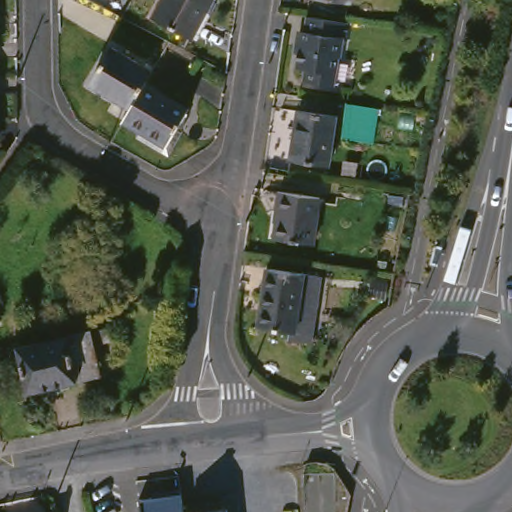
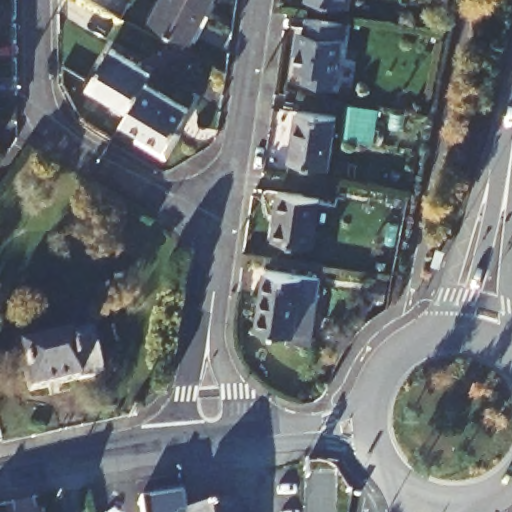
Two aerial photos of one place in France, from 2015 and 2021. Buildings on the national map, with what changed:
unchanged [(166,0),(216,0),(195,38),(156,17),(166,0)]
unchanged [(356,3),(337,0),(356,0),(356,3)]
unchanged [(343,40),(340,39),(337,61),(336,61),(332,88),(303,84),(305,72),(296,71),(300,47),(303,48),(305,33),(306,33),(308,18),(345,23),(343,40)]
unchanged [(93,83),(114,47),(156,72),(148,85),(134,108),(93,83)]
unchanged [(134,108),(148,85),(193,111),(170,150),(125,122),(134,108)]
unchanged [(373,150),(341,145),(346,109),(378,114),(373,150)]
unchanged [(301,117),(338,123),(330,173),(293,167),(301,117)]
unchanged [(283,243),(287,215),(285,215),(287,195),(313,199),(330,201),(323,249),(283,243)]
unchanged [(322,277),(312,345),(288,342),(290,333),(261,329),(270,269),(322,277)]
unchanged [(94,333),(104,377),(32,394),(21,350),(94,333)]
unchanged [(185,491),(189,511),(189,512),(144,512),(141,497),(185,491)]
unchanged [(232,512),(189,512),(189,511),(231,504),(232,512)]

